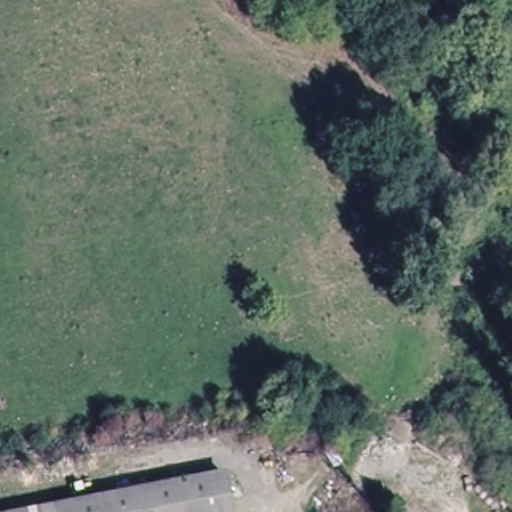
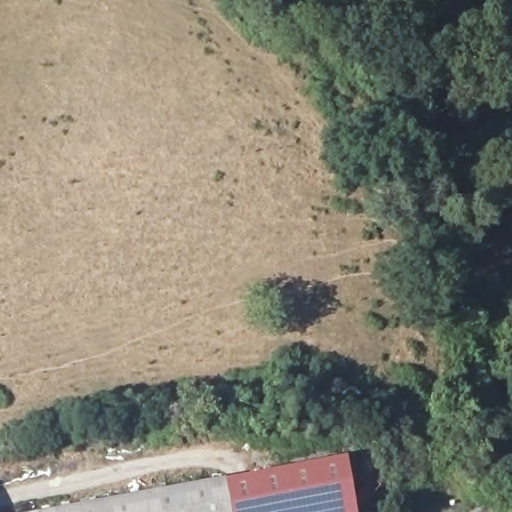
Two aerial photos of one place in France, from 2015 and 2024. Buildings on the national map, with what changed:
new [(356,512),(223,512),(217,480),(345,456),(356,512)]
unchanged [(217,480),(223,512),(38,512),(216,477),(217,480)]

